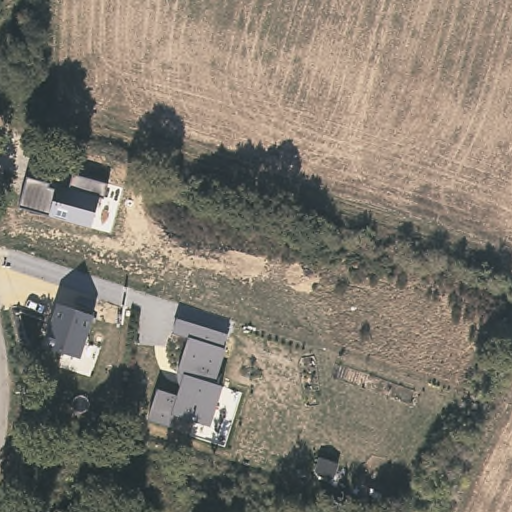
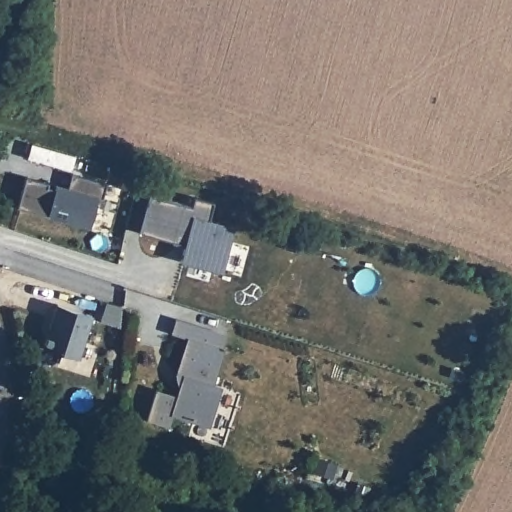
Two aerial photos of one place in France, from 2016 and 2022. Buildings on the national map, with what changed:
unchanged [(50,183),(49,188),(56,190),(57,185),(69,187),(73,174),(108,182),(105,197),(99,196),(91,227),(19,206),(28,178),(50,183)]
new [(149,193),(191,205),(194,195),(214,202),(208,220),(233,228),(222,271),(179,261),(186,236),(177,233),(175,241),(138,231),(149,193)]
unchanged [(46,347),(58,304),(93,315),(80,357),(46,347)]
unchanged [(170,426),(149,420),(157,389),(177,395),(180,383),(177,375),(178,369),(189,337),(172,332),(177,319),(227,334),(225,347),(214,383),(221,385),(209,425),(173,415),(170,426)]

